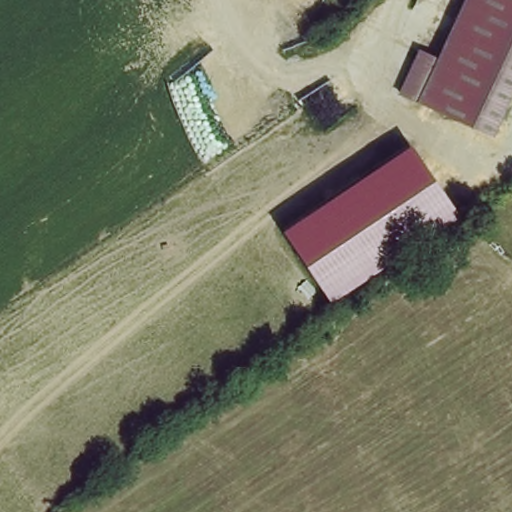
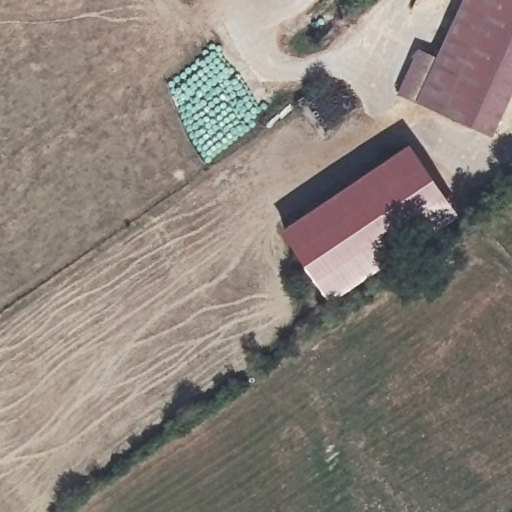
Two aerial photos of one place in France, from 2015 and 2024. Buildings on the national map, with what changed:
unchanged [(498,134),(403,94),(423,50),(443,57),(469,0),(512,0),(512,104),(498,134)]
unchanged [(411,144),(463,217),(332,304),(283,229),(411,144)]

